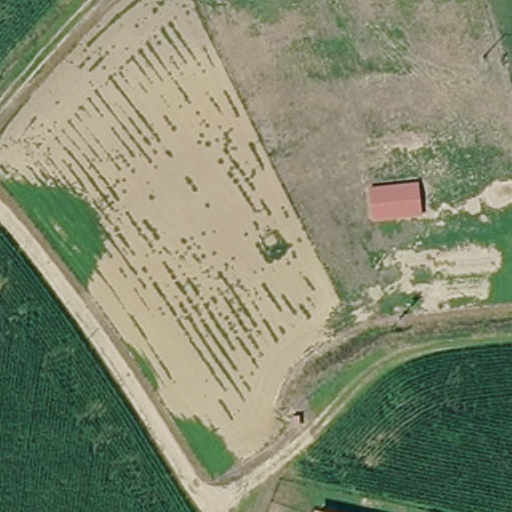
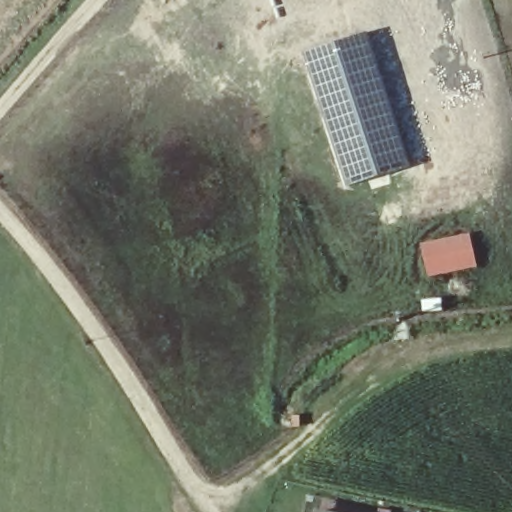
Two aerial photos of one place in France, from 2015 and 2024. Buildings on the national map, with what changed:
new [(367,32),(410,167),(346,188),(302,54),(367,32)]
unchanged [(394,185),(407,214),(362,237),(346,205),(394,185)]
new [(463,227),(476,256),(431,279),(415,247),(463,227)]

